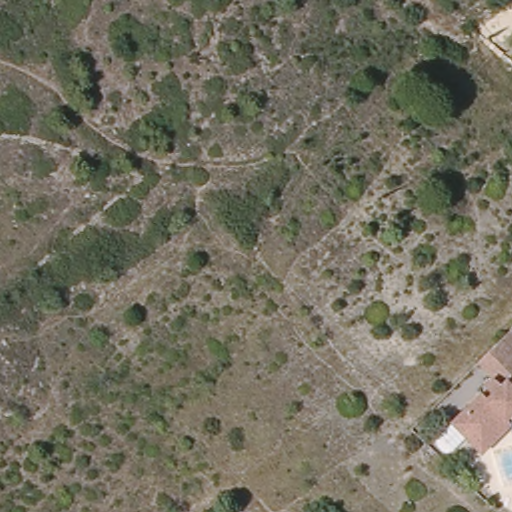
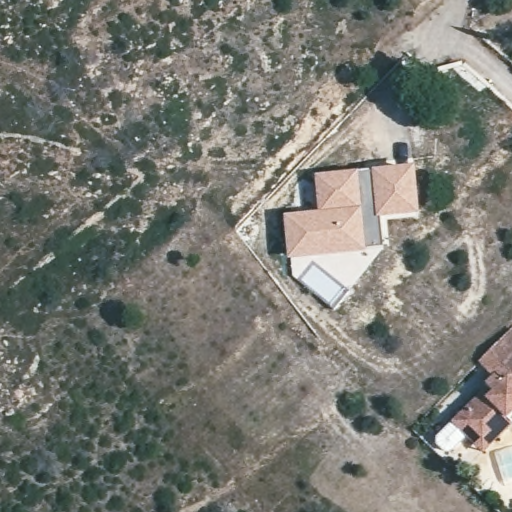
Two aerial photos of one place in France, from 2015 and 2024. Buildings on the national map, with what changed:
new [(298,264),(288,275),(287,259),(283,215),(318,211),(315,175),(415,166),(419,214),(387,217),(390,250),(374,252),(336,296),(298,264)]
unchanged [(495,368),(481,359),(512,325),(512,377),(498,378),(488,385),(484,382),(495,368)]
unchanged [(449,415),(488,385),(498,378),(512,377),(512,421),(481,443),(449,415)]

